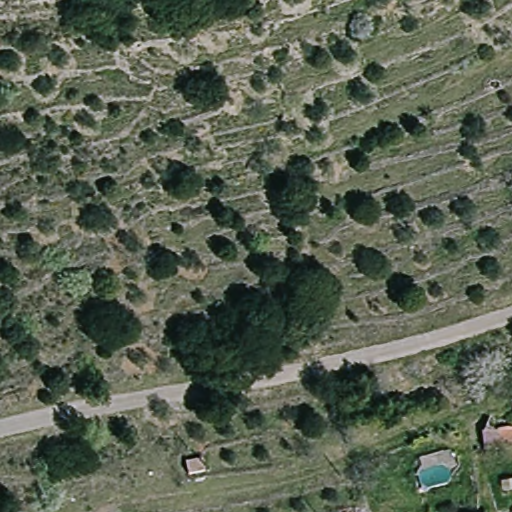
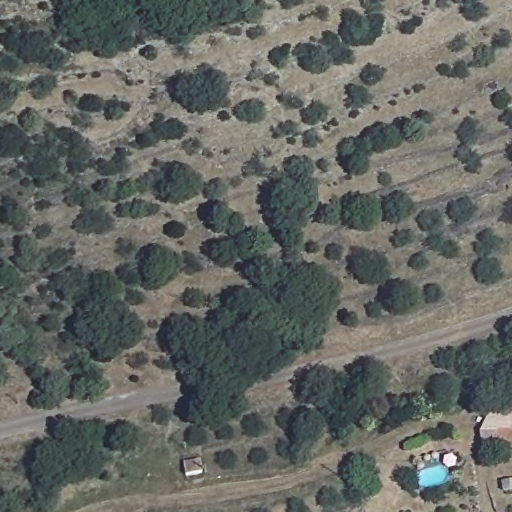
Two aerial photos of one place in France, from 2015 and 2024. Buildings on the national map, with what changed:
unchanged [(500,443),(512,444),(510,461),(474,460),(475,445),(492,432),(500,443)]
unchanged [(176,459),(160,463),(158,451),(174,447),(176,459)]

